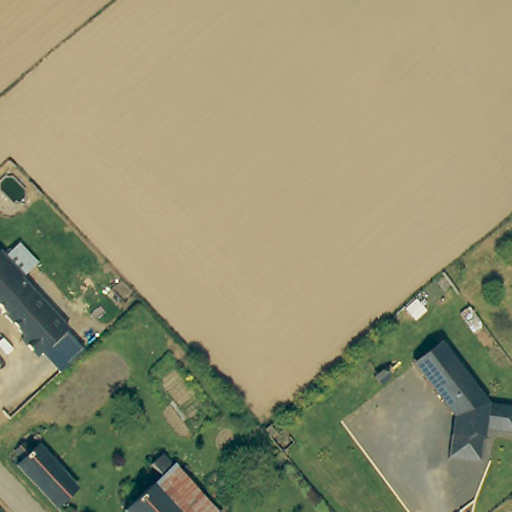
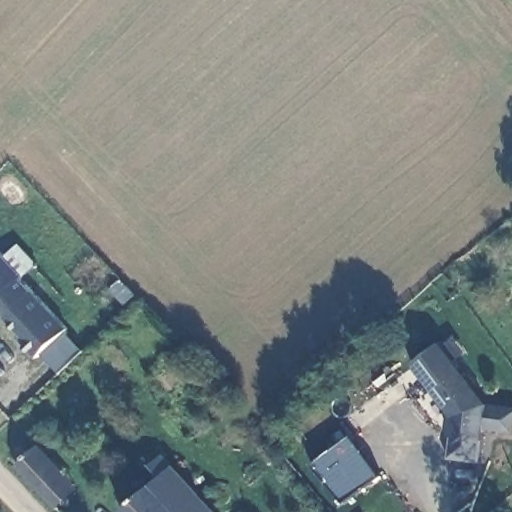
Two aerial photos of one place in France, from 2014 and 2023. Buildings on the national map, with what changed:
unchanged [(38,264),(27,274),(9,255),(20,243),(38,264)]
unchanged [(58,309),(30,337),(10,315),(9,312),(0,302),(0,252),(4,249),(27,274),(25,276),(58,309)]
unchanged [(72,327),(68,330),(86,350),(61,373),(42,355),(37,359),(20,340),(27,333),(30,337),(58,309),(72,327)]
unchanged [(435,388),(416,361),(443,340),(464,368),(435,388)]
unchanged [(457,418),(435,388),(464,368),(490,405),(512,410),(512,436),(486,430),(483,442),(478,463),(447,458),(457,418)]
new [(342,502),(312,465),(352,435),(383,476),(342,502)]
unchanged [(19,461),(27,455),(18,446),(27,437),(36,445),(42,440),(66,466),(86,490),(64,508),(19,461)]
unchanged [(164,473),(151,462),(161,451),(226,511),(225,512),(129,512),(164,473)]

